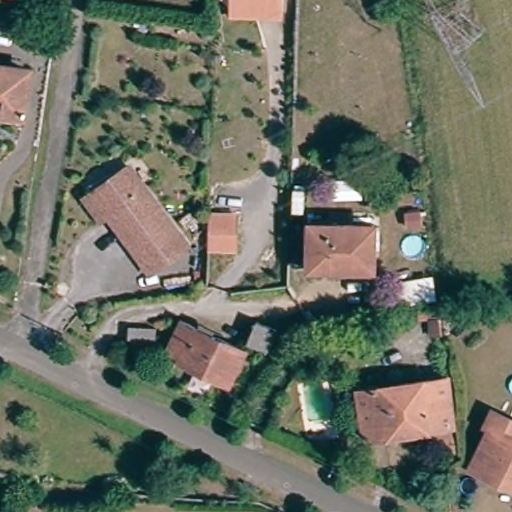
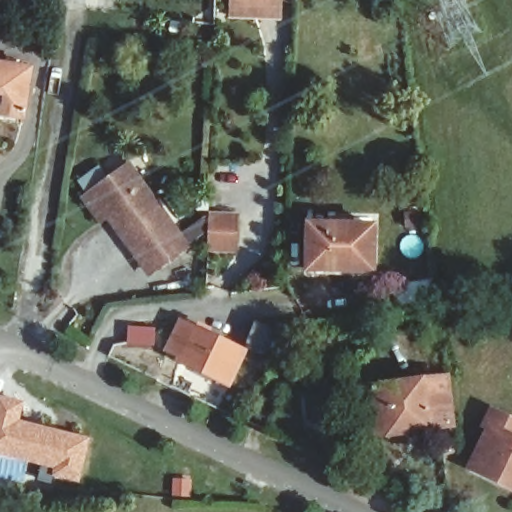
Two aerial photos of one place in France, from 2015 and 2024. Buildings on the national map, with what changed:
unchanged [(234,0),(279,0),(279,10),(234,9),(234,0)]
unchanged [(24,116),(0,112),(0,66),(30,70),(24,116)]
unchanged [(160,273),(119,215),(110,222),(94,198),(103,192),(138,166),(195,247),(160,273)]
unchanged [(233,220),(232,250),(207,249),(208,219),(233,220)]
unchanged [(374,271),(309,269),(309,224),(375,226),(374,271)]
unchanged [(423,297),(396,302),(393,284),(419,280),(423,297)]
unchanged [(241,347),(224,381),(173,357),(175,352),(162,346),(176,316),(241,347)]
unchanged [(264,347),(243,339),(251,318),(272,326),(264,347)]
unchanged [(155,345),(128,344),(129,327),(156,329),(155,345)]
unchanged [(452,427),(364,439),(358,389),(446,377),(452,427)]
new [(20,421),(90,439),(80,484),(54,478),(56,469),(0,456),(0,396),(25,403),(20,421)]
unchanged [(503,483),(470,467),(489,429),(484,427),(492,412),(512,421),(512,488),(503,483)]

